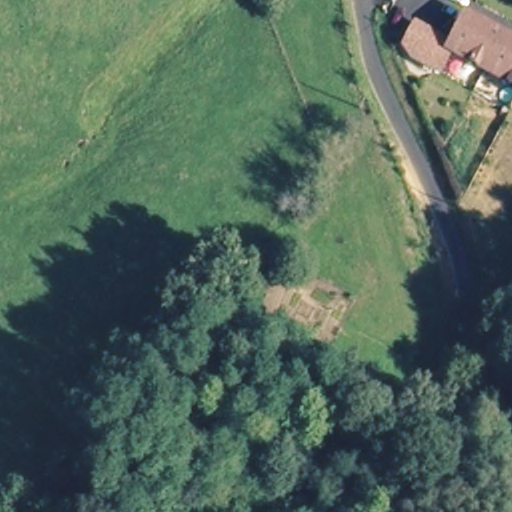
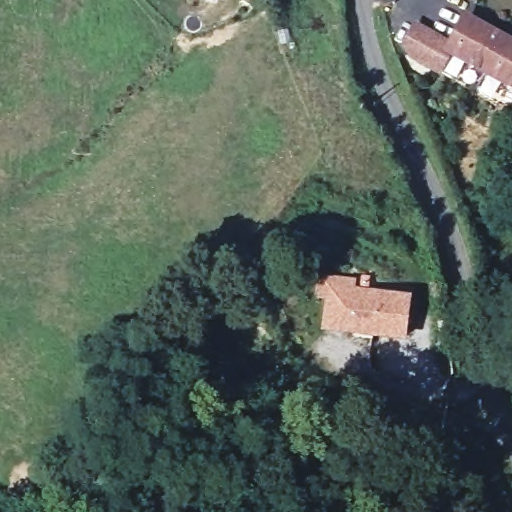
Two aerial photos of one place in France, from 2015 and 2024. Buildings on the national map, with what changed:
unchanged [(452,48),(451,47),(453,41),(467,15),(512,42),(512,84),(452,48)]
unchanged [(419,21),(453,41),(451,47),(452,48),(441,67),(421,55),(416,53),(407,41),(419,21)]
new [(317,274),(371,276),(369,287),(413,294),(407,339),(320,329),(323,300),(313,299),(317,274)]

